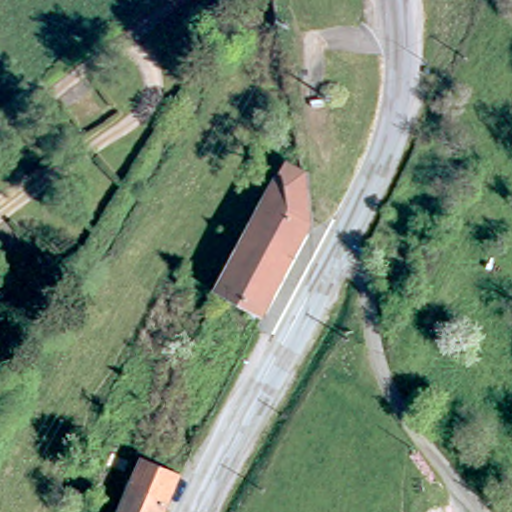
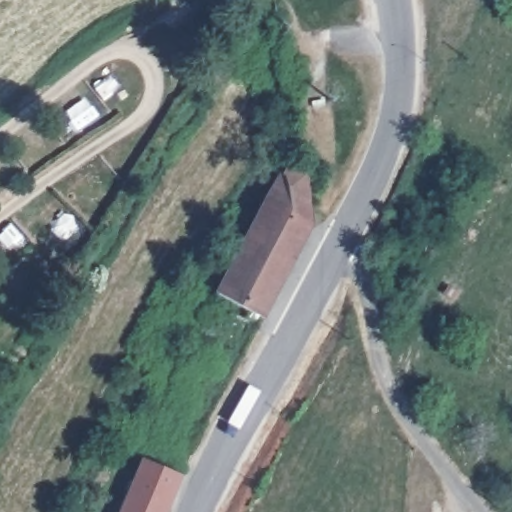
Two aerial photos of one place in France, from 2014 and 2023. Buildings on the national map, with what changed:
unchanged [(348,110),(349,121),(339,121),(339,110),(348,110)]
unchanged [(315,224),(299,255),(256,232),(291,163),(307,170),(311,173),(315,224)]
unchanged [(223,294),(256,232),(299,255),(267,318),(223,294)]
unchanged [(126,505),(121,503),(131,482),(134,484),(146,459),(181,475),(166,512),(123,512),(126,505)]

